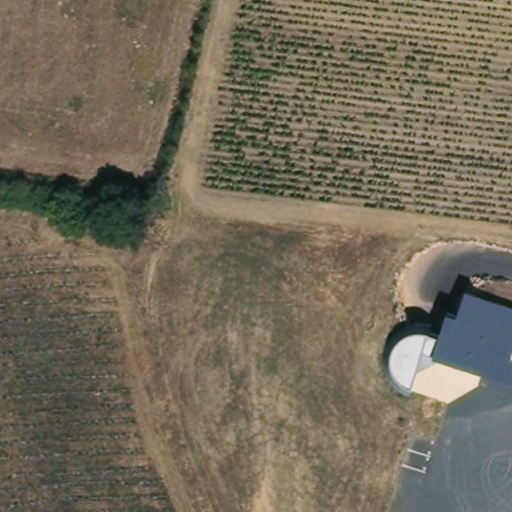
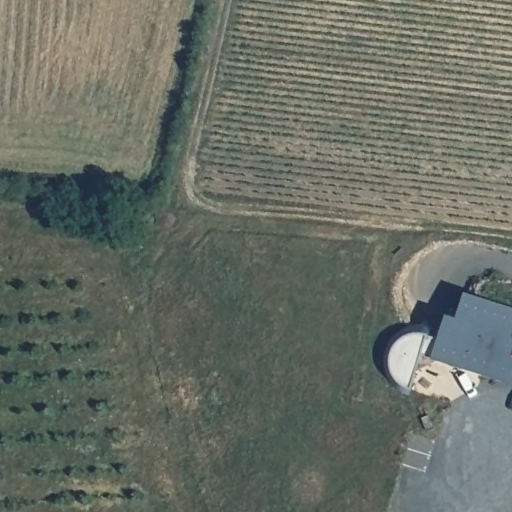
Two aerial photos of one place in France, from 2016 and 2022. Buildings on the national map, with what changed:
unchanged [(400,382),(392,371),(390,361),(393,349),(400,340),(409,334),(421,332),(430,333),(439,336),(447,314),(457,319),(466,293),(512,309),(512,384),(437,360),(418,370),(410,389),(400,382)]

